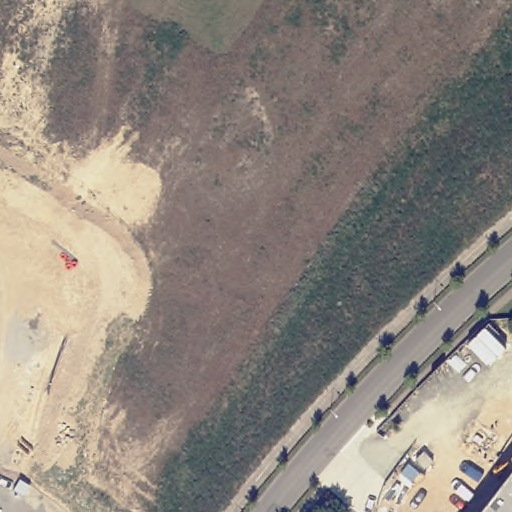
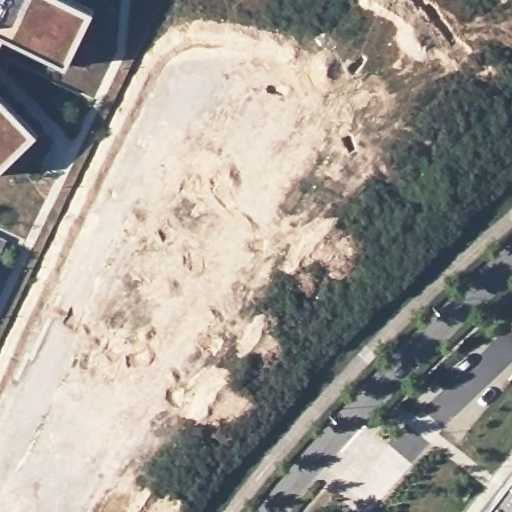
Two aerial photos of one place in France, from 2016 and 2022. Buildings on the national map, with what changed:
new [(1,36),(0,40),(0,0),(72,0),(94,10),(67,65),(1,36)]
new [(0,97),(35,134),(0,168),(0,97)]
new [(0,251),(0,238),(5,240),(0,251)]
unchanged [(482,512),(512,473),(512,512),(482,512)]

